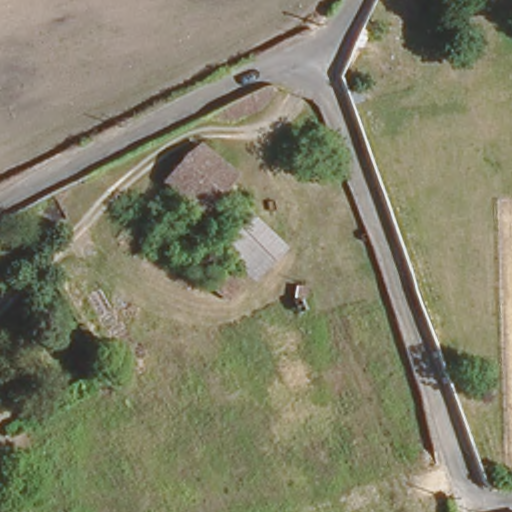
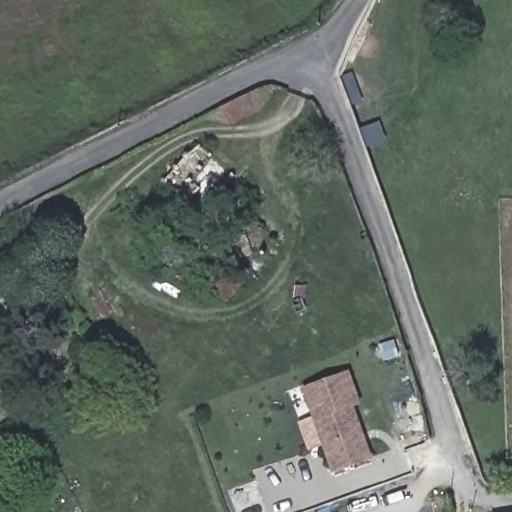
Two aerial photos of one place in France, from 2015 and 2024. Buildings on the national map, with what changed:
demolished [(293,98),(285,111),(262,128),(236,140),(209,127),(261,101),(271,96),(284,94),(293,98)]
unchanged [(207,215),(163,183),(200,140),(239,171),(207,215)]
unchanged [(253,281),(218,243),(252,209),(288,246),(253,281)]
unchanged [(207,287),(224,267),(243,281),(230,301),(207,287)]
new [(361,403),(354,406),(373,457),(333,474),(303,388),(348,372),(361,403)]

